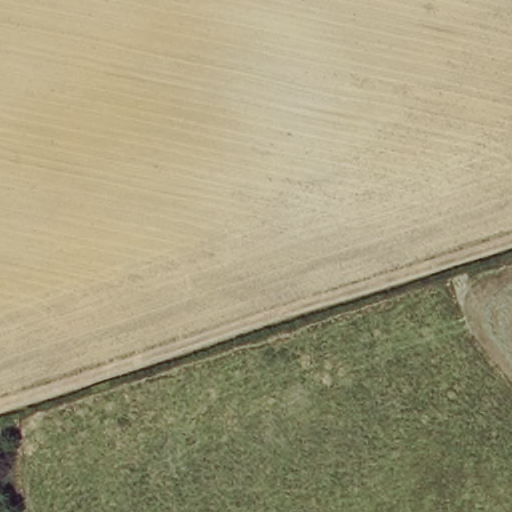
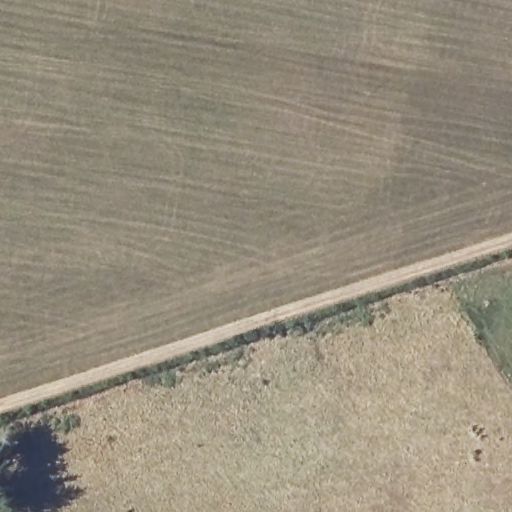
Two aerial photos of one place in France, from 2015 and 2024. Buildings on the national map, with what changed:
[]

